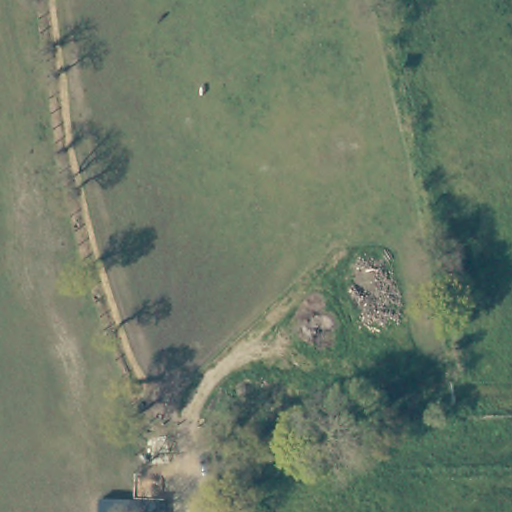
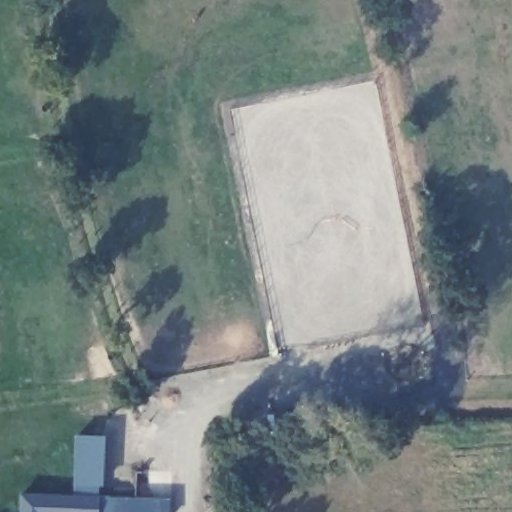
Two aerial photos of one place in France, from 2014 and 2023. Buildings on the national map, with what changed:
new [(21,493),(73,495),(75,436),(106,437),(104,487),(104,496),(170,499),(170,512),(20,512),(21,493)]

